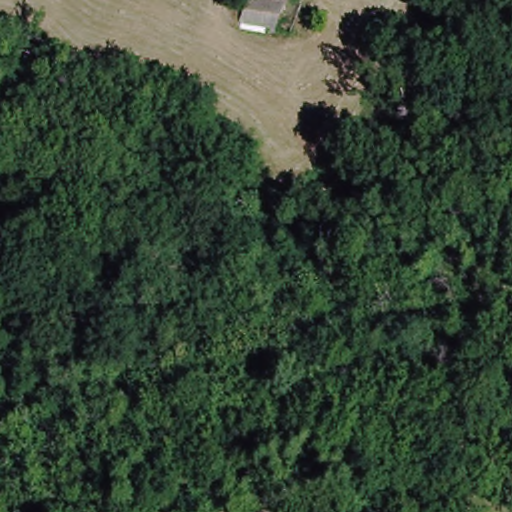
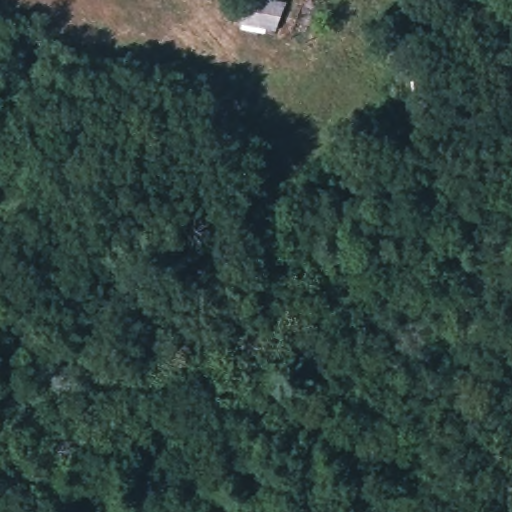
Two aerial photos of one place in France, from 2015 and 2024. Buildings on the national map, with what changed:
unchanged [(247,0),(249,0),(285,9),(282,28),(244,21),(247,0)]

